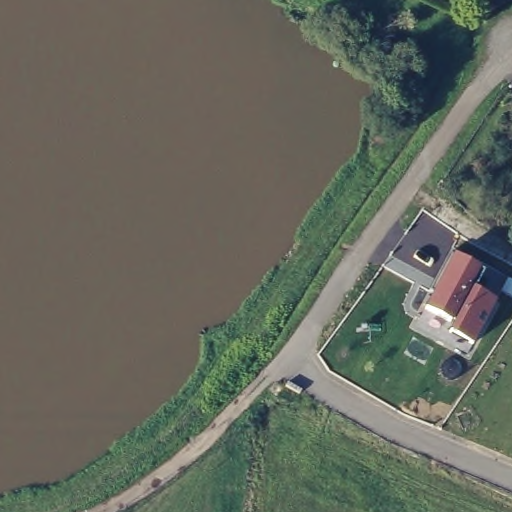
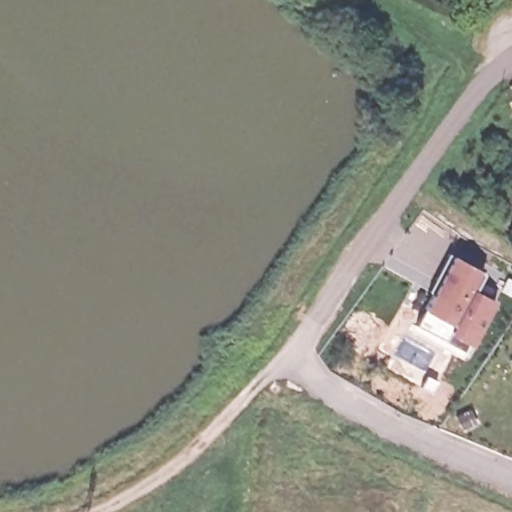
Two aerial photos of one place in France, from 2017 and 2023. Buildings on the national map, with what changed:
unchanged [(448,333),(452,321),(424,309),(453,253),(483,268),(474,288),(497,299),(475,343),(448,333)]

